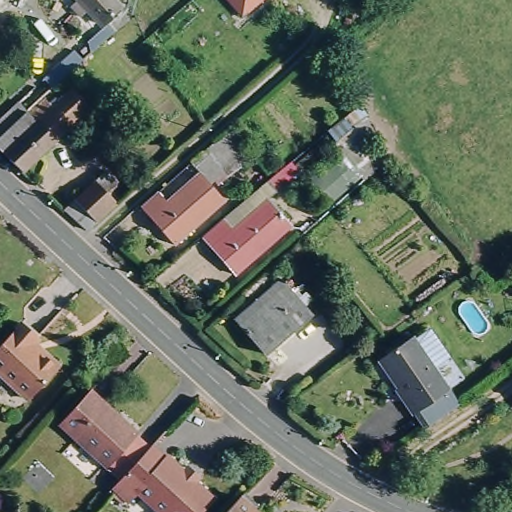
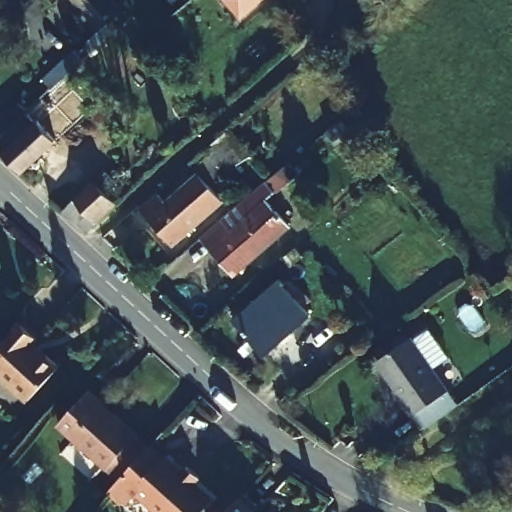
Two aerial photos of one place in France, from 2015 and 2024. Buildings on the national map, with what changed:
unchanged [(106,0),(114,8),(95,27),(70,0),(106,0)]
unchanged [(219,0),(256,0),(235,19),(219,0)]
unchanged [(82,41),(117,10),(122,22),(97,42),(85,52),(82,41)]
unchanged [(42,81),(73,52),(82,61),(50,90),(42,81)]
unchanged [(43,100),(50,108),(74,85),(95,106),(23,174),(0,152),(0,122),(18,104),(27,112),(28,115),(43,100)]
unchanged [(325,129),(347,112),(385,158),(364,177),(325,129)]
unchanged [(255,154),(213,190),(227,202),(176,247),(142,210),(233,129),(255,154)]
unchanged [(298,171),(266,200),(290,227),(235,276),(200,237),(289,161),(298,171)]
unchanged [(85,229),(82,232),(62,215),(57,211),(98,171),(112,186),(102,195),(110,204),(85,229)]
unchanged [(304,256),(292,268),(283,259),(296,247),(304,256)]
unchanged [(265,355),(235,321),(281,281),(310,315),(265,355)]
unchanged [(40,336),(32,343),(59,368),(28,402),(0,376),(0,345),(23,321),(40,336)]
unchanged [(379,356),(412,333),(450,387),(414,412),(395,386),(398,383),(379,356)]
unchanged [(138,436),(107,469),(58,425),(90,392),(138,436)]
unchanged [(169,456),(171,453),(215,495),(200,512),(168,512),(142,487),(132,497),(116,483),(154,442),(169,456)]
unchanged [(258,507),(254,512),(226,512),(243,493),(258,507)]

